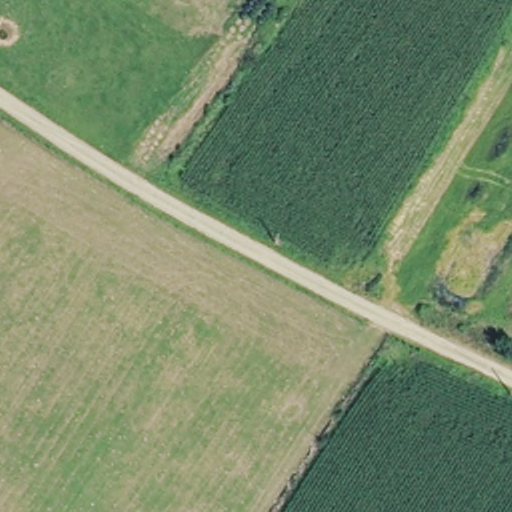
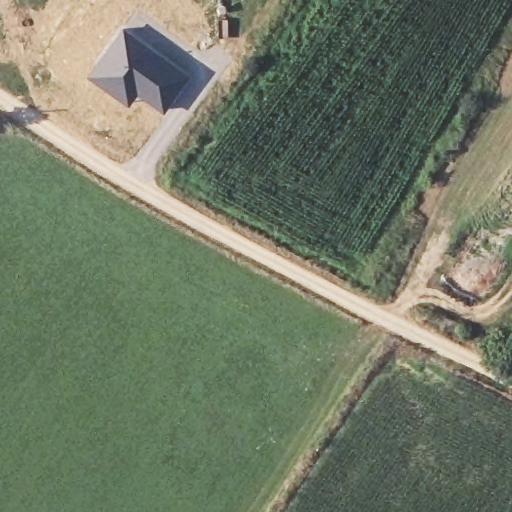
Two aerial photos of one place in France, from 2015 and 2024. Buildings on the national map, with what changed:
new [(123,24),(141,35),(190,72),(164,113),(136,97),(128,107),(85,76),(123,24)]

